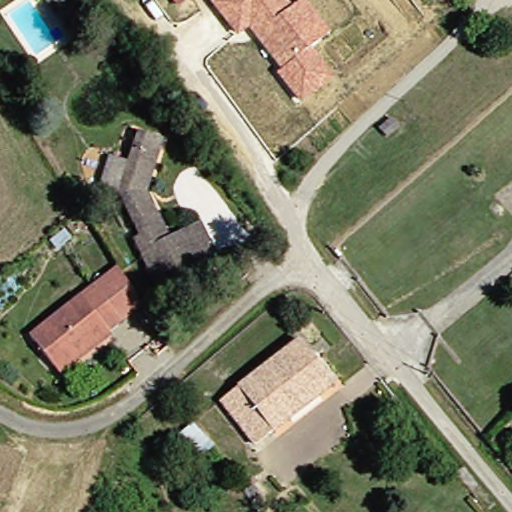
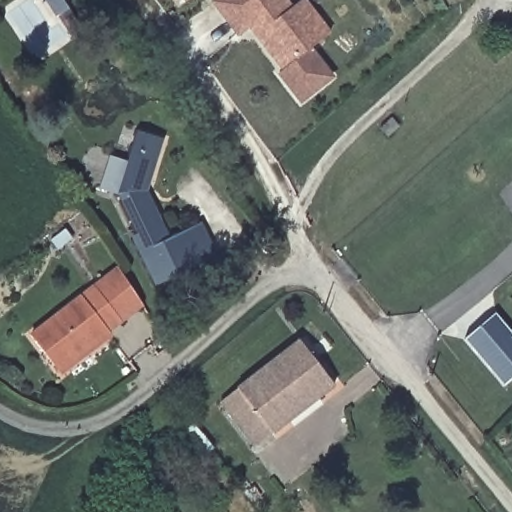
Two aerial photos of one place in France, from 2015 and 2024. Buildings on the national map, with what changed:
unchanged [(330,31),(311,48),(334,79),(300,104),(275,75),(280,71),(247,28),(236,36),(209,2),(211,0),(289,0),(293,5),(300,0),(305,0),(330,31)]
unchanged [(99,62),(91,49),(87,44),(80,47),(71,36),(89,24),(100,45),(109,57),(99,62)]
unchanged [(173,242),(205,227),(221,259),(160,289),(135,242),(141,239),(120,197),(100,191),(112,158),(130,165),(140,135),(169,147),(150,196),(173,242)]
unchanged [(119,323),(107,331),(111,337),(62,375),(31,333),(117,267),(140,301),(116,320),(119,323)]
new [(495,314),(512,333),(512,380),(504,387),(465,340),(495,314)]
unchanged [(334,386),(273,433),(269,432),(255,443),(220,398),(298,339),(334,386)]

